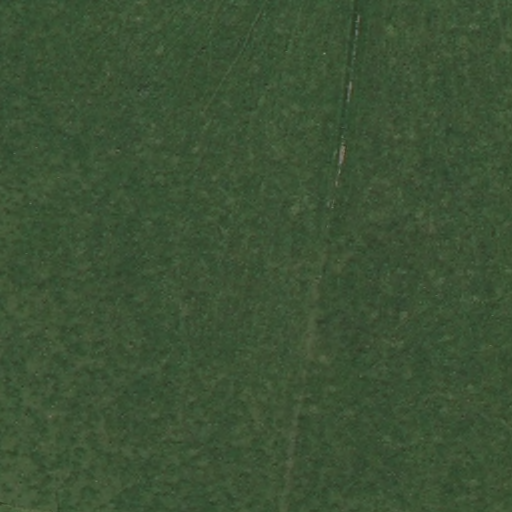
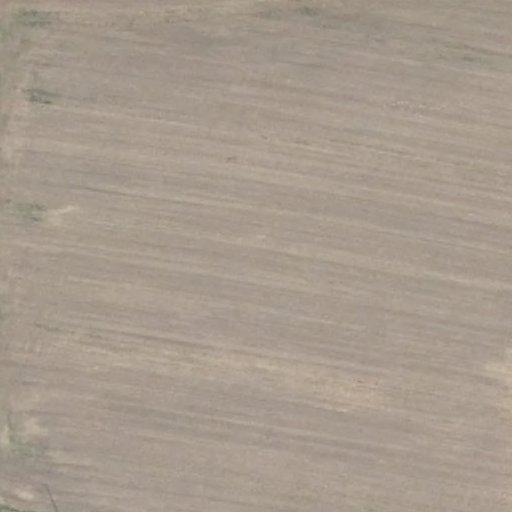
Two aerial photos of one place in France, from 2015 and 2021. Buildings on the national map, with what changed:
[]

